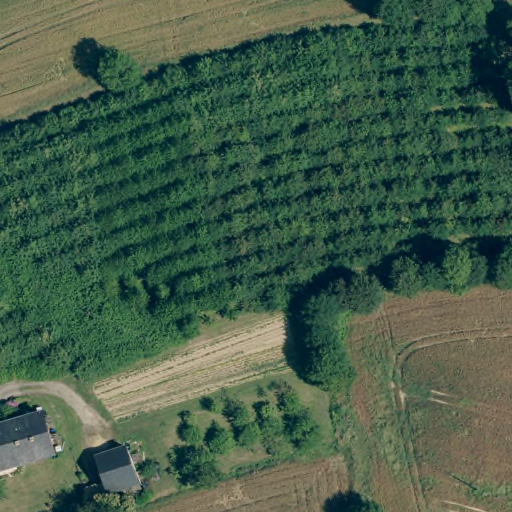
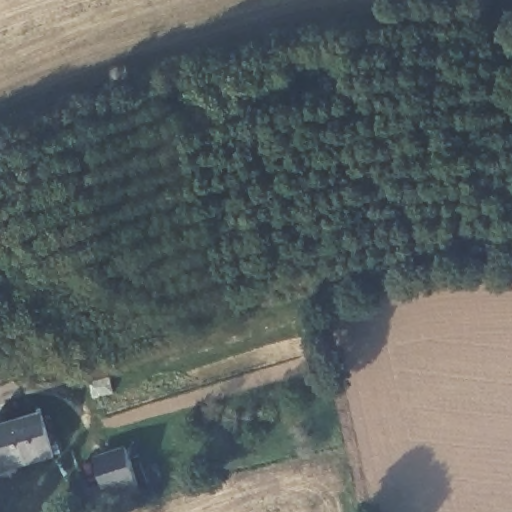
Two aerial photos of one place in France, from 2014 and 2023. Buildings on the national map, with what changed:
unchanged [(0,427),(42,415),(55,456),(0,472),(0,427)]
unchanged [(112,503),(109,491),(95,454),(127,444),(139,479),(144,492),(112,503)]

